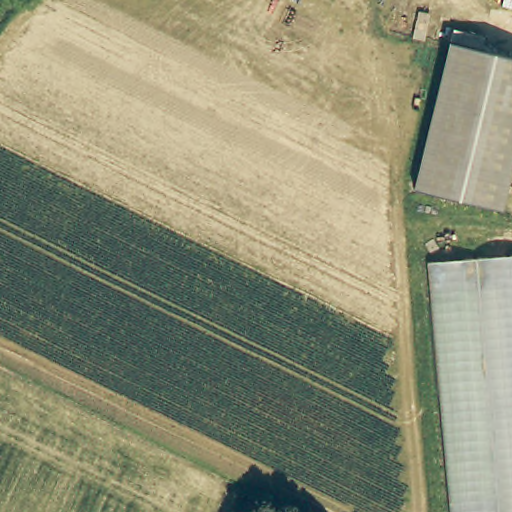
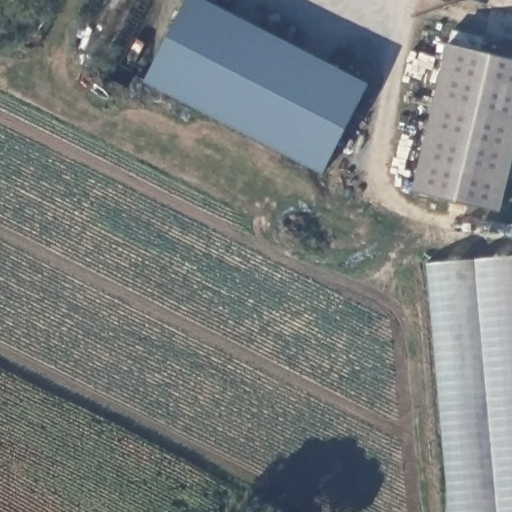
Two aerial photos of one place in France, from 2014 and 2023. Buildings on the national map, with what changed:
new [(325,172),(144,80),(185,0),(208,0),(367,82),(325,172)]
unchanged [(408,185),(427,110),(445,40),(512,58),(512,169),(501,210),(408,185)]
unchanged [(445,512),(422,263),(512,255),(512,512),(445,512)]

